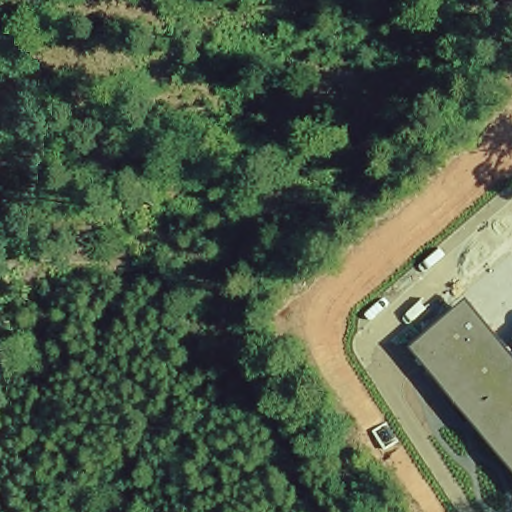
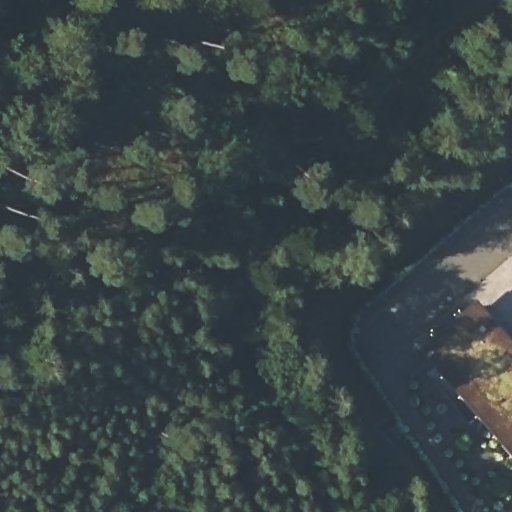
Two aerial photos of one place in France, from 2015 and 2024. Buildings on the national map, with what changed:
unchanged [(470,295),(512,342),(512,458),(413,344),(470,295)]

